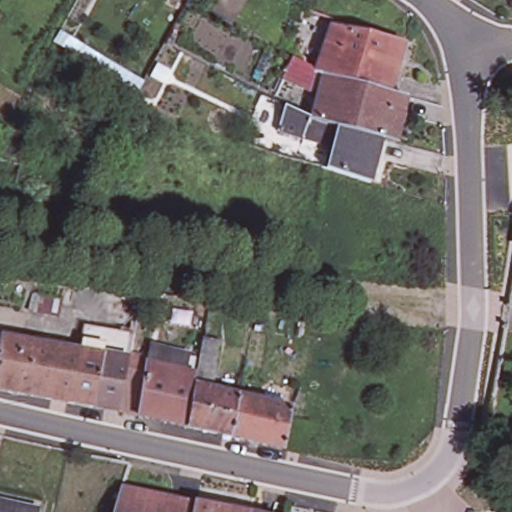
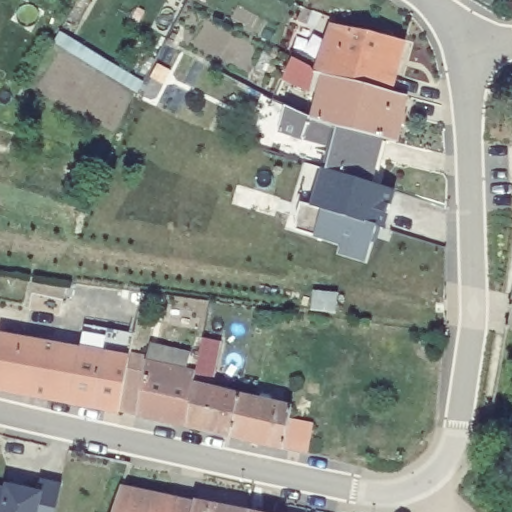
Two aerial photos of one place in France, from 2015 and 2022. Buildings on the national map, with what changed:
unchanged [(318,74),(334,27),(335,27),(354,31),(406,45),(394,95),(324,75),(318,74)]
unchanged [(314,70),(316,74),(309,90),(281,79),(289,57),(314,70)]
unchanged [(338,127),(309,119),(324,75),(394,95),(407,99),(397,145),(384,141),(382,141),(338,127)]
unchanged [(303,142),(278,134),(286,109),(309,119),(303,142)]
unchanged [(382,141),(371,185),(326,171),(338,127),(382,141)]
unchanged [(0,135),(17,139),(11,165),(10,170),(6,187),(0,186),(0,135)]
unchanged [(11,189),(16,169),(30,172),(33,172),(52,177),(54,166),(70,170),(68,180),(67,184),(63,201),(11,189)]
new [(371,185),(396,192),(385,231),(375,229),(366,263),(339,256),(341,245),(314,238),(296,232),(296,223),(301,201),(316,205),(326,171),(371,185)]
unchanged [(185,424),(151,416),(135,413),(115,410),(90,405),(21,391),(33,338),(76,347),(81,323),(105,327),(129,332),(125,353),(143,356),(143,361),(193,376),(201,336),(218,341),(209,390),(236,395),(229,434),(185,424)]
unchanged [(21,391),(0,387),(0,332),(33,338),(21,391)]
unchanged [(305,447),(282,445),(229,434),(236,395),(291,405),(289,413),(312,415),(305,447)]
unchanged [(169,500),(191,503),(189,512),(112,512),(118,490),(169,500)]
unchanged [(204,506),(234,512),(189,512),(191,503),(204,506)]
unchanged [(0,512),(0,509),(15,512),(0,512)]

